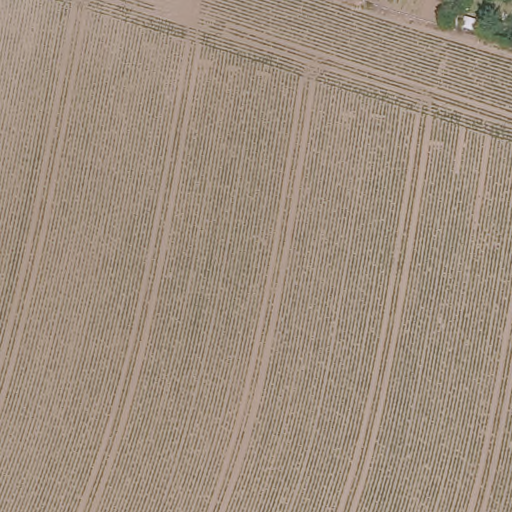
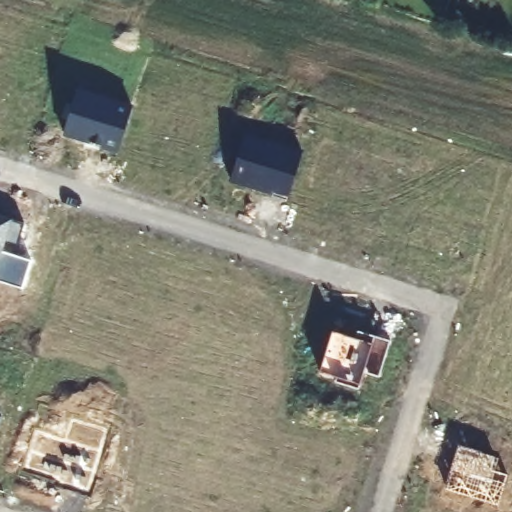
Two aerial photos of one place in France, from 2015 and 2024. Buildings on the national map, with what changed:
new [(76,89),(132,107),(117,151),(102,146),(103,145),(64,132),(76,89)]
new [(243,134),(301,151),(286,199),(272,195),(273,193),(230,180),(243,134)]
new [(16,245),(2,241),(0,249),(0,215),(23,223),(16,245)]
new [(22,288),(0,281),(0,251),(30,260),(22,288)]
new [(331,330),(346,335),(346,336),(353,338),(356,330),(389,340),(378,376),(363,372),(358,389),(333,381),(335,376),(319,370),(331,330)]
new [(446,488),(460,446),(500,458),(496,470),(510,475),(500,505),(446,488)]

